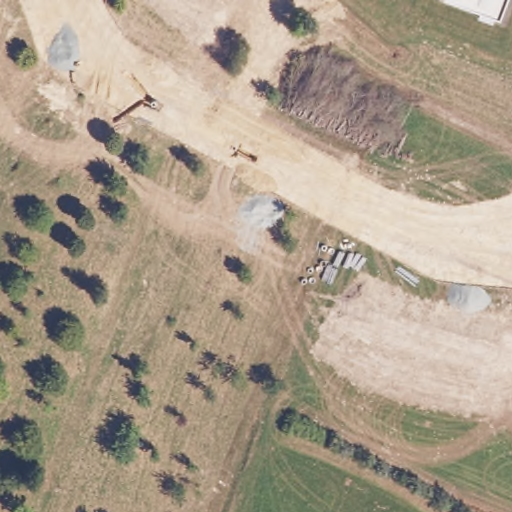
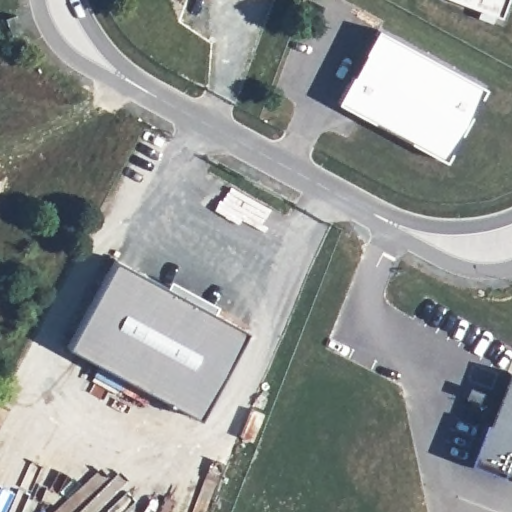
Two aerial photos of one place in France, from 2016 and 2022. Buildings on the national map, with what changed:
unchanged [(452,0),(507,0),(501,17),(452,0)]
new [(378,30),(486,87),(446,161),(338,103),(378,30)]
new [(116,260),(169,288),(173,281),(217,306),(215,312),(246,329),(201,417),(70,345),(116,260)]
new [(487,424),(507,370),(512,372),(512,476),(505,473),(504,476),(469,462),(484,422),(487,424)]

